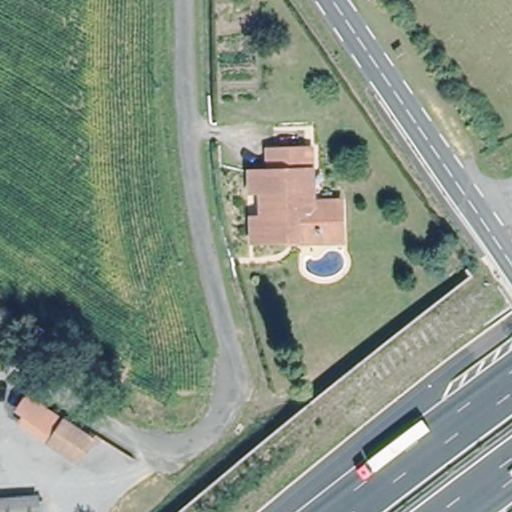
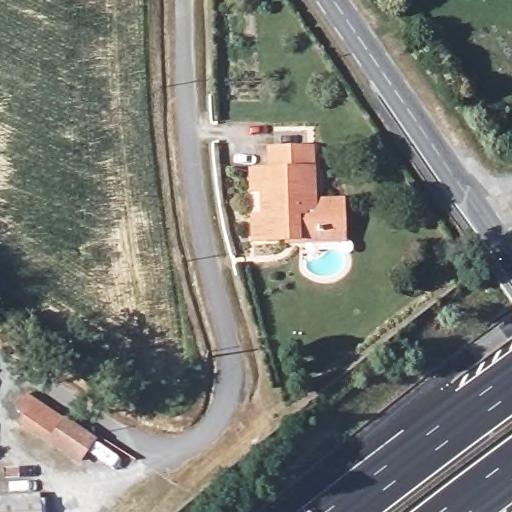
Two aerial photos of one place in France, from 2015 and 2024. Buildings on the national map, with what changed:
unchanged [(254,238),(254,215),(263,215),(263,187),(254,187),(253,169),(271,169),(271,146),(310,146),(311,199),(342,199),(342,237),(254,238)]
unchanged [(77,462),(50,443),(23,424),(28,417),(20,411),(29,397),(65,421),(92,439),(77,462)]
unchanged [(38,512),(0,512),(0,510),(0,500),(36,495),(38,512)]

